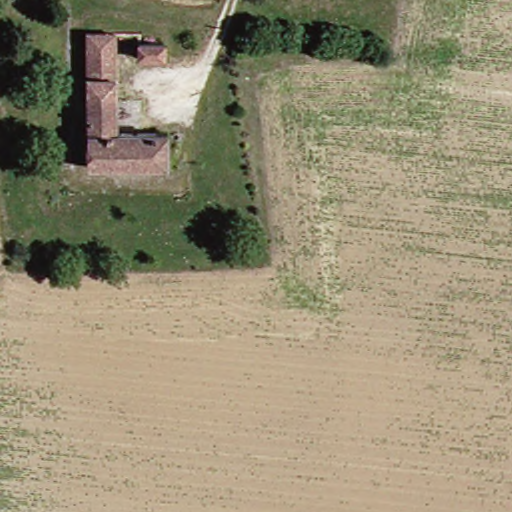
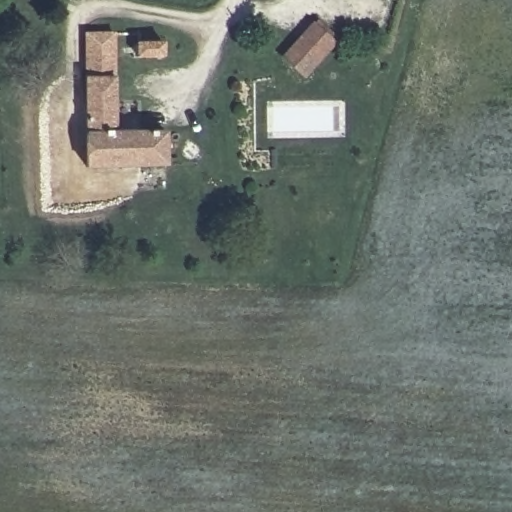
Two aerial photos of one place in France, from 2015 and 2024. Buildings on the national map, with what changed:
new [(305,80),(281,57),(313,21),(338,43),(305,80)]
unchanged [(119,36),(121,80),(94,81),(93,36),(119,36)]
unchanged [(139,61),(139,47),(165,47),(166,61),(139,61)]
unchanged [(121,80),(124,137),(95,137),(94,81),(121,80)]
unchanged [(124,137),(173,136),(174,167),(95,167),(95,137),(124,137)]

